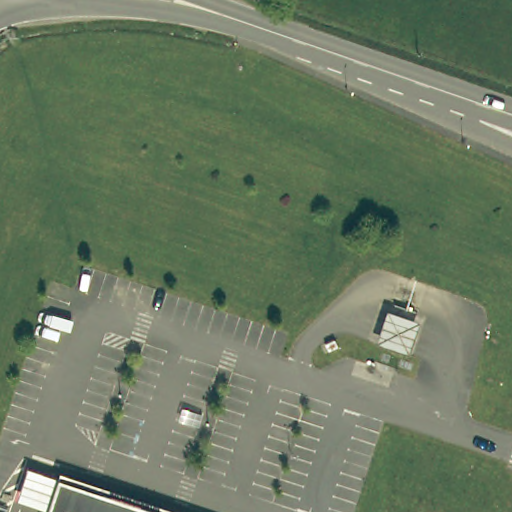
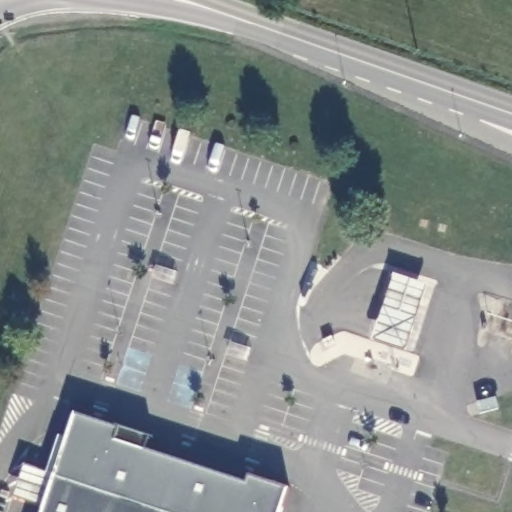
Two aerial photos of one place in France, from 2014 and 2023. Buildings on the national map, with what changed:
unchanged [(405,352),(376,342),(385,310),(415,319),(405,352)]
new [(54,476),(44,507),(15,497),(25,465),(47,473),(59,436),(67,438),(75,413),(151,438),(146,451),(247,484),(249,476),(290,490),(283,512),(165,512),(54,476)]
unchanged [(54,476),(165,512),(43,512),(54,476)]

